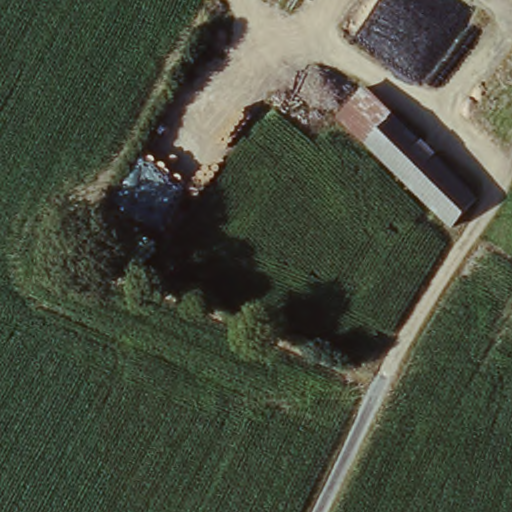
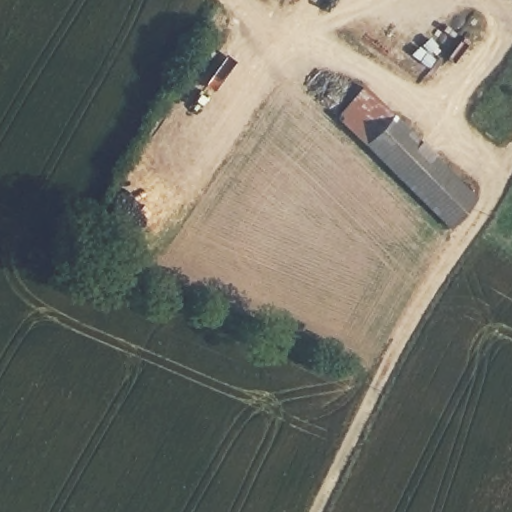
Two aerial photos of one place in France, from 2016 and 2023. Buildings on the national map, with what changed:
unchanged [(314,0),(319,0),(317,2),(314,0)]
unchanged [(333,119),(360,89),(385,112),(356,141),(333,119)]
unchanged [(385,112),(470,194),(443,223),(356,141),(385,112)]

